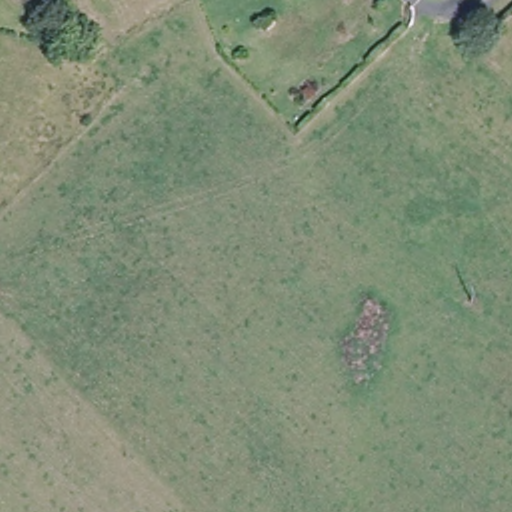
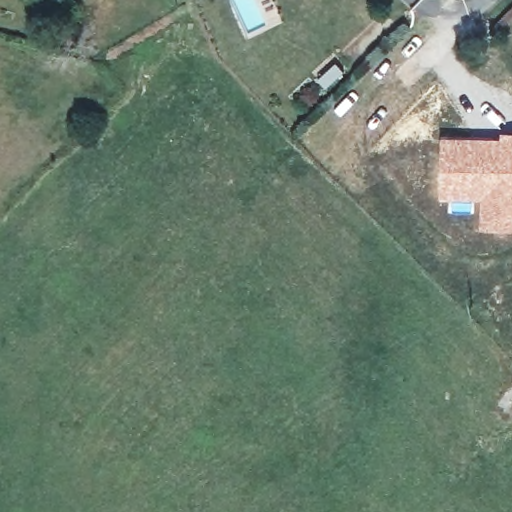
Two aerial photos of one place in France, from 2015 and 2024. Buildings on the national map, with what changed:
new [(440,136),(500,136),(500,130),(512,131),(512,228),(480,227),(480,199),(440,197),(440,136)]

